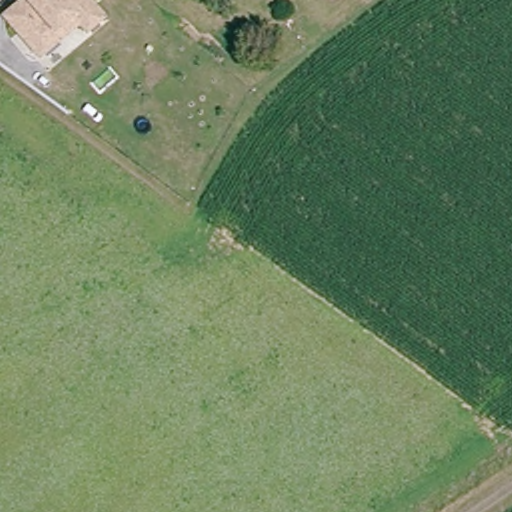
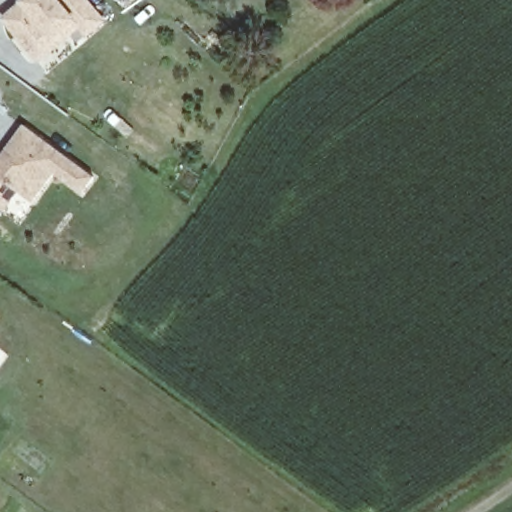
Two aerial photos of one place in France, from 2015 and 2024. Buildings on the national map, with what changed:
unchanged [(37,54),(6,20),(29,0),(87,0),(104,19),(89,33),(81,25),(42,60),(37,54)]
new [(83,192),(56,174),(35,200),(20,191),(5,209),(0,205),(0,156),(2,157),(25,126),(94,177),(83,192)]

